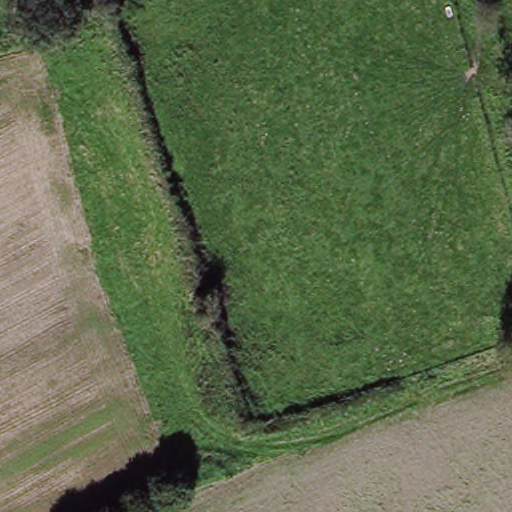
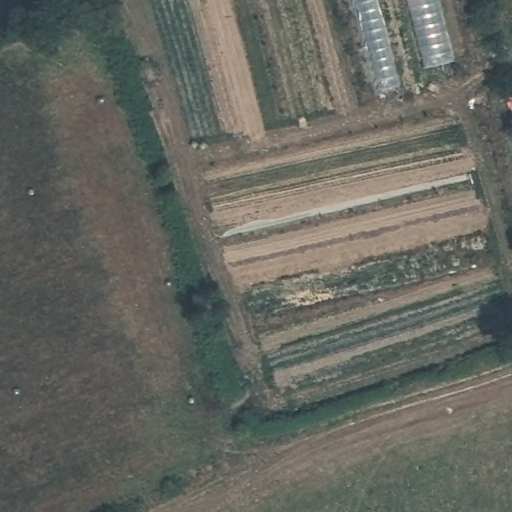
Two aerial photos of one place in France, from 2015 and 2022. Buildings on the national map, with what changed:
new [(377,93),(350,0),(380,0),(402,86),(377,93)]
new [(424,70),(407,0),(438,0),(454,62),(424,70)]
demolished [(228,373),(244,366),(258,403),(242,410),(228,373)]

